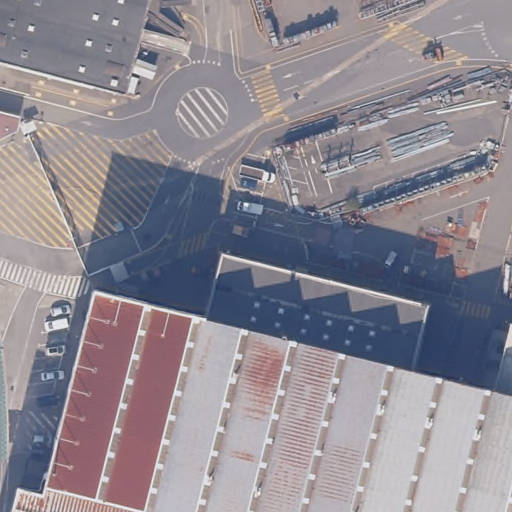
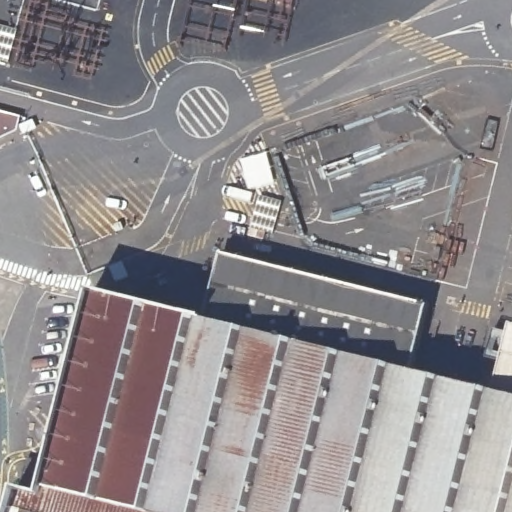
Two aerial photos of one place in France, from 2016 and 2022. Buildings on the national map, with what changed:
demolished [(129,94),(0,65),(0,0),(152,0),(129,94)]
new [(83,90),(9,71),(17,34),(91,53),(83,90)]
unchanged [(0,109),(20,114),(23,129),(0,140),(0,109)]
unchanged [(118,284),(149,292),(152,297),(149,307),(205,321),(222,253),(232,256),(232,257),(237,258),(237,257),(263,263),(263,265),(268,266),(268,265),(296,272),(295,273),(307,275),(307,274),(334,281),(334,282),(339,283),(339,282),(429,305),(412,372),(446,381),(446,382),(472,388),(472,387),(479,389),(486,360),(500,364),(510,324),(512,324),(512,512),(14,512),(24,471),(29,472),(35,444),(54,449),(94,294),(114,298),(118,284)]

